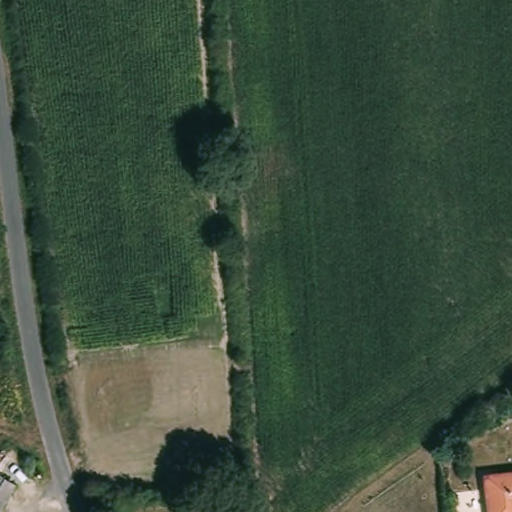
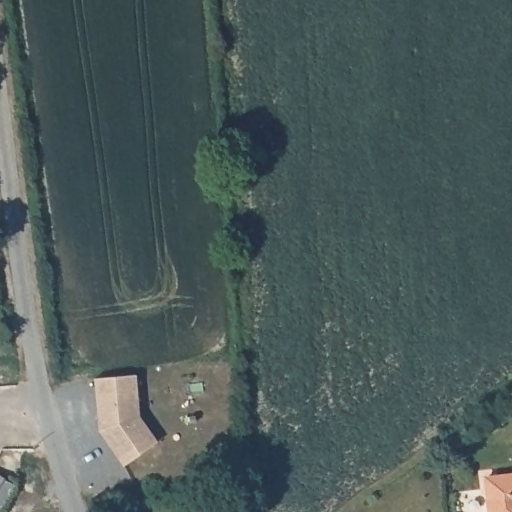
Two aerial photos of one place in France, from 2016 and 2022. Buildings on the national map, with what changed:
new [(141,413),(158,442),(125,465),(100,430),(94,378),(137,374),(141,413)]
unchanged [(18,485),(2,512),(0,512),(0,475),(18,485)]
unchanged [(512,476),(512,512),(494,512),(488,479),(512,476)]

